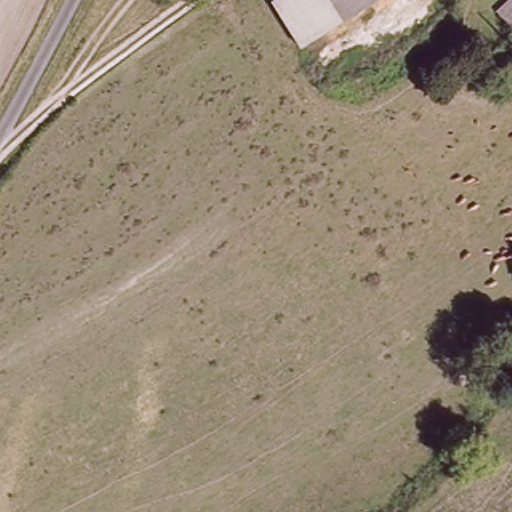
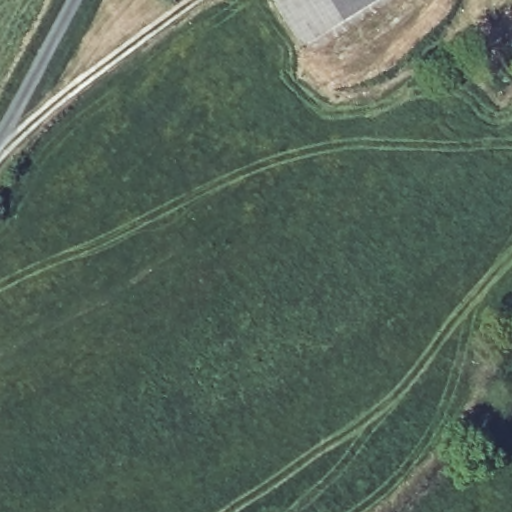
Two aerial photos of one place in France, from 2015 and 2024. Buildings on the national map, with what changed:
unchanged [(288,0),(386,0),(304,53),(274,9),(288,0)]

